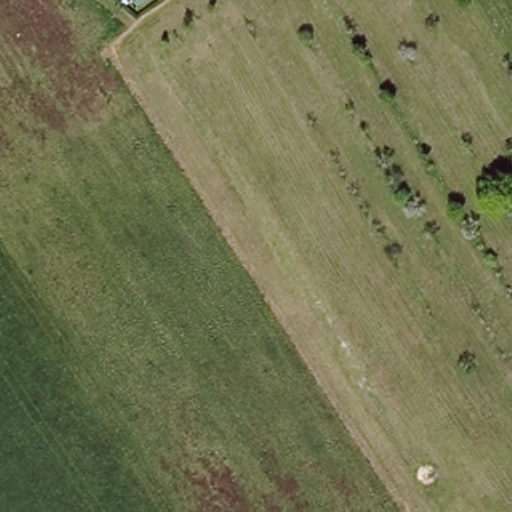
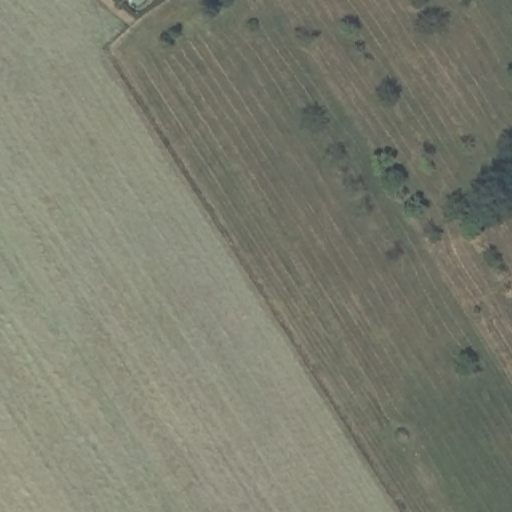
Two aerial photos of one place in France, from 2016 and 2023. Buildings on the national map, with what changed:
[]

